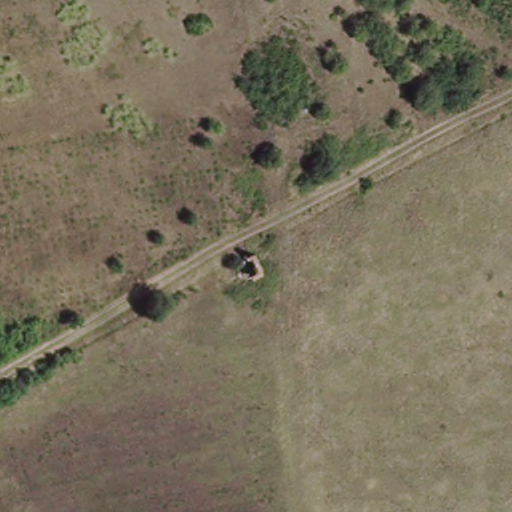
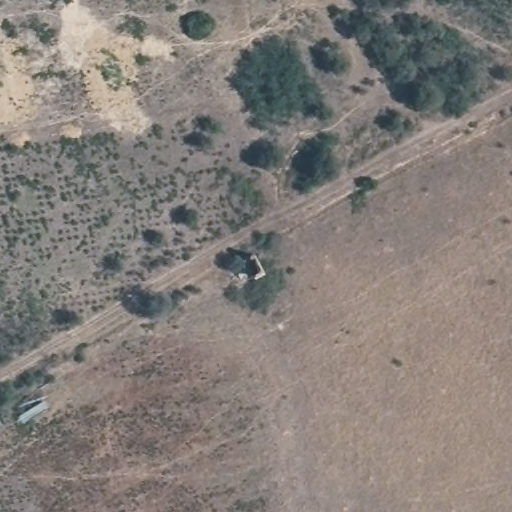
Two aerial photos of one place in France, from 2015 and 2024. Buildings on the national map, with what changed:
unchanged [(253,259),(261,274),(241,283),(234,268),(253,259)]

